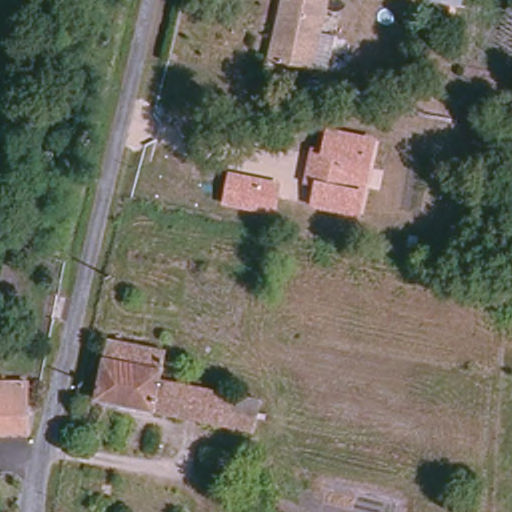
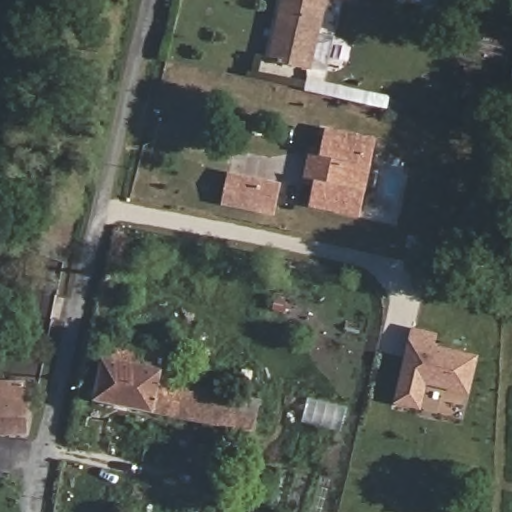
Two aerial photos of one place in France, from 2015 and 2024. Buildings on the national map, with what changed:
unchanged [(269,60),(281,0),(323,0),(309,67),(269,60)]
unchanged [(413,0),(436,0),(434,5),(413,0)]
unchanged [(371,164),(366,190),(362,215),(310,206),(314,184),(304,182),(312,146),(322,149),(328,127),(378,137),(371,164)]
unchanged [(275,214),(221,204),(229,171),(282,181),(275,214)]
new [(407,327),(441,336),(437,348),(481,359),(473,392),(431,381),(424,407),(404,401),(414,360),(399,356),(407,327)]
unchanged [(95,398),(110,341),(163,353),(163,364),(240,384),(239,401),(283,412),(277,440),(95,398)]
unchanged [(0,433),(0,384),(20,384),(32,432),(0,433)]

